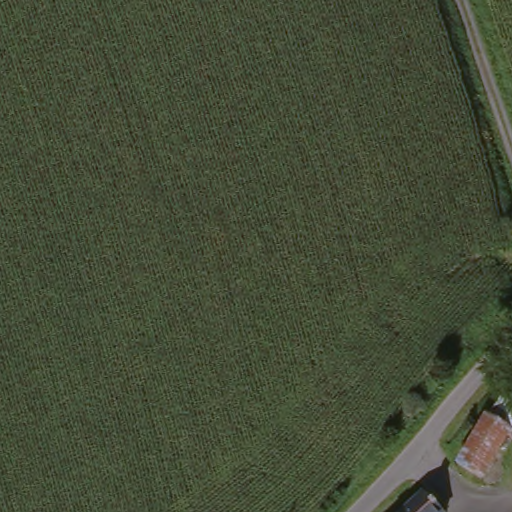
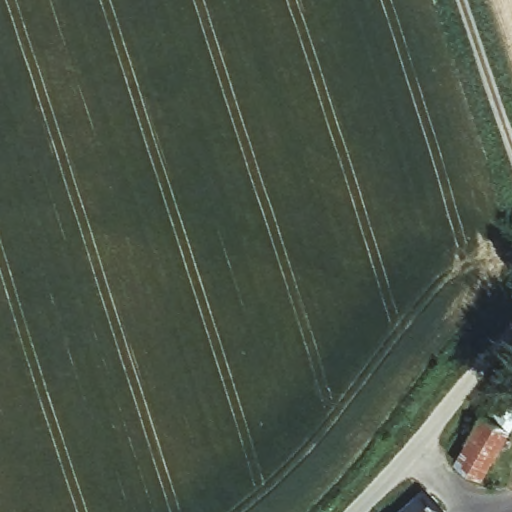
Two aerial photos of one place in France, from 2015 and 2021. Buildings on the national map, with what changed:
unchanged [(512,422),(478,477),(454,463),(472,428),(498,395),(512,405),(512,422)]
unchanged [(424,488),(444,510),(441,512),(397,512),(424,488)]

